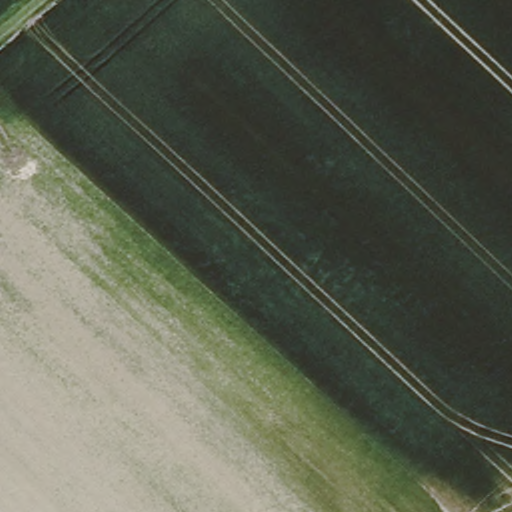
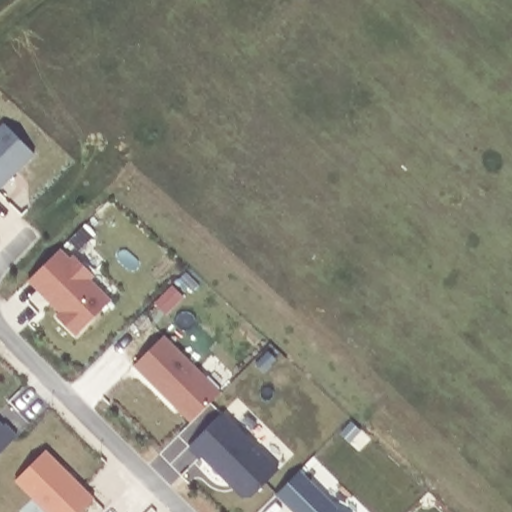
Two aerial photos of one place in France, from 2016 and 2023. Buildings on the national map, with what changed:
new [(35,154),(0,189),(0,126),(4,122),(35,154)]
new [(61,247),(70,256),(72,254),(95,275),(91,280),(112,300),(77,336),(57,316),(60,313),(29,282),(61,247)]
new [(165,334),(222,392),(191,422),(135,366),(165,334)]
new [(224,415),(278,468),(251,497),(242,498),(203,457),(199,460),(188,450),(224,415)]
new [(5,423),(18,437),(0,455),(0,422),(3,425),(5,423)]
new [(46,449),(95,498),(81,512),(46,512),(15,481),(46,449)]
new [(300,470),(342,512),(293,512),(277,495),(300,470)]

